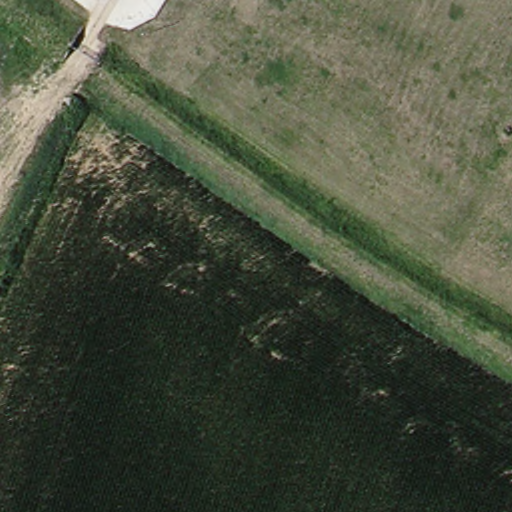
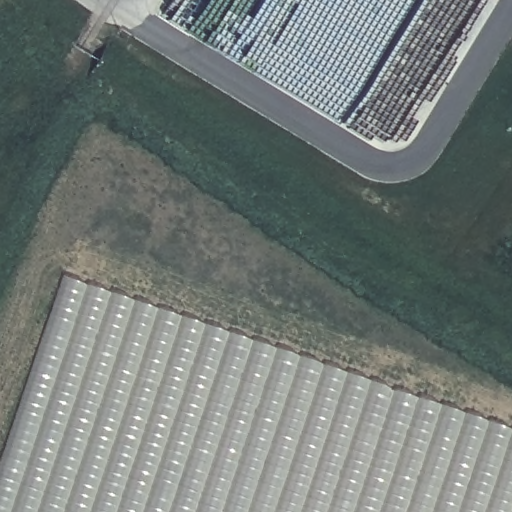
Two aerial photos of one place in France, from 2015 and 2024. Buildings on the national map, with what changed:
new [(512,430),(512,512),(0,512),(0,460),(63,275),(512,430)]

